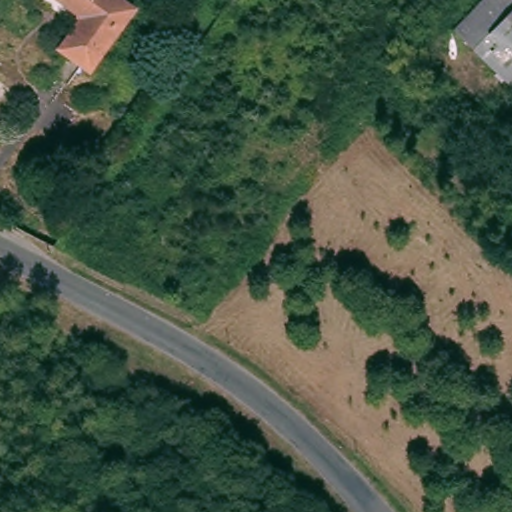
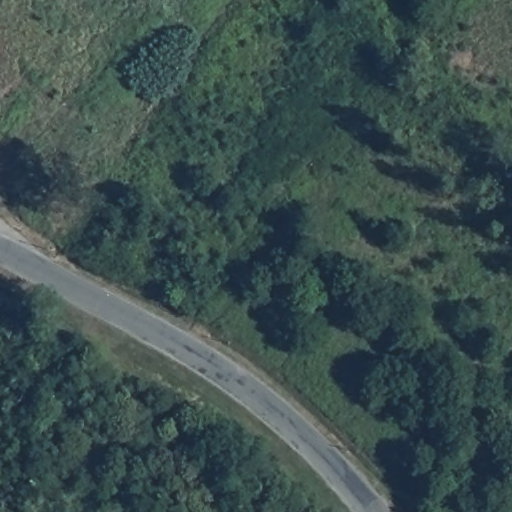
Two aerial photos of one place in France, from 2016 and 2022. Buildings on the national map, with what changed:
demolished [(86,73),(56,49),(79,19),(53,0),(119,0),(132,10),(86,73)]
demolished [(512,0),(512,91),(454,33),(483,0),(512,0)]

